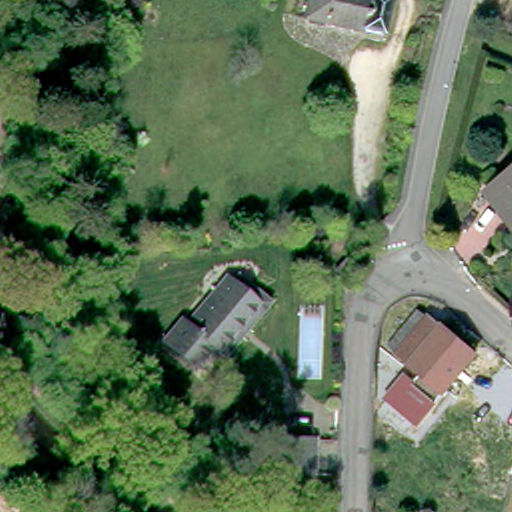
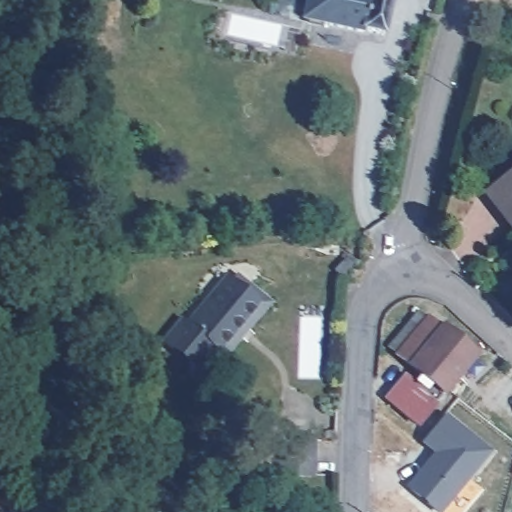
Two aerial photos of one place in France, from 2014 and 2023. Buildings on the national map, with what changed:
unchanged [(377,28),(358,24),(357,27),(300,15),(302,0),(384,0),(377,28)]
unchanged [(491,189),(512,172),(512,215),(491,189)]
unchanged [(230,271),(265,301),(220,355),(213,348),(251,302),(224,278),(230,271)]
unchanged [(251,302),(213,348),(205,342),(203,345),(198,341),(200,339),(180,321),(197,300),(201,304),(224,278),(251,302)]
unchanged [(413,425),(383,398),(400,377),(410,385),(416,376),(391,355),(392,353),(385,347),(415,312),(421,317),(423,316),(436,327),(438,326),(471,355),(413,425)]
new [(493,451),(442,512),(435,512),(405,487),(433,452),(421,443),(446,413),(493,451)]
unchanged [(320,438),(316,472),(287,470),(290,436),(320,438)]
demolished [(507,512),(503,510),(510,500),(512,502),(512,512),(507,512)]

